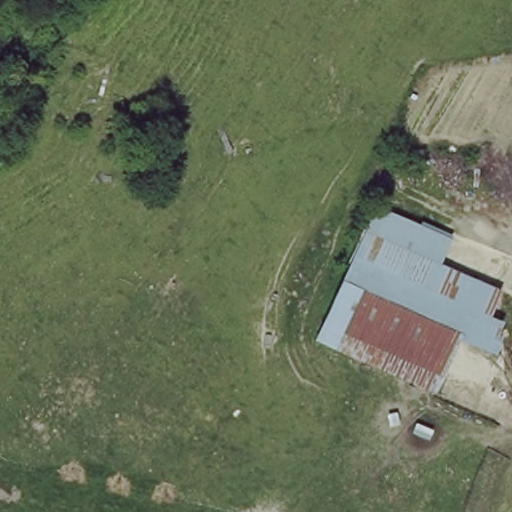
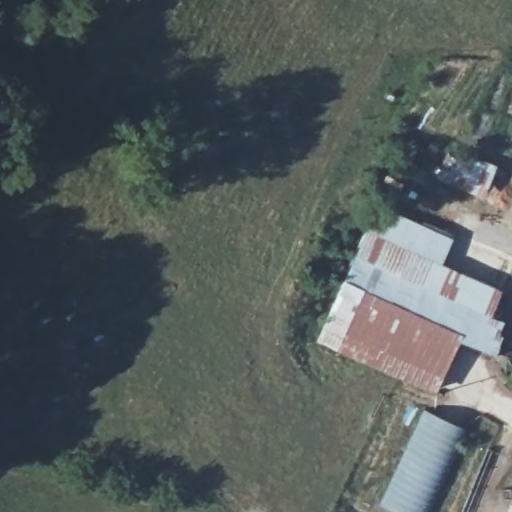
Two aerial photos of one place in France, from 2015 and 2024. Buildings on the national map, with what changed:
unchanged [(375,206),(450,238),(440,264),(500,297),(492,315),(495,351),(460,337),(432,395),(319,342),(375,206)]
new [(424,410),(469,429),(431,512),(396,512),(381,506),(424,410)]

